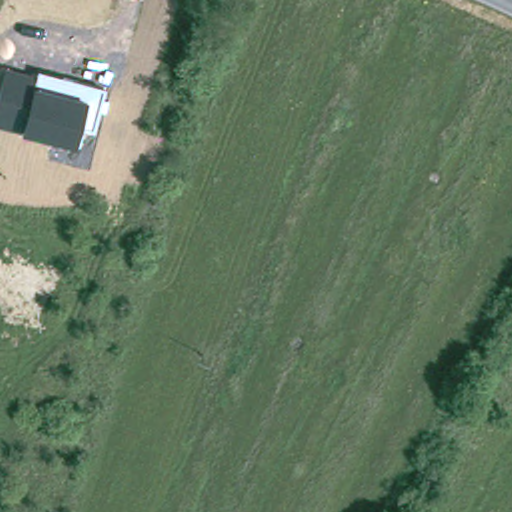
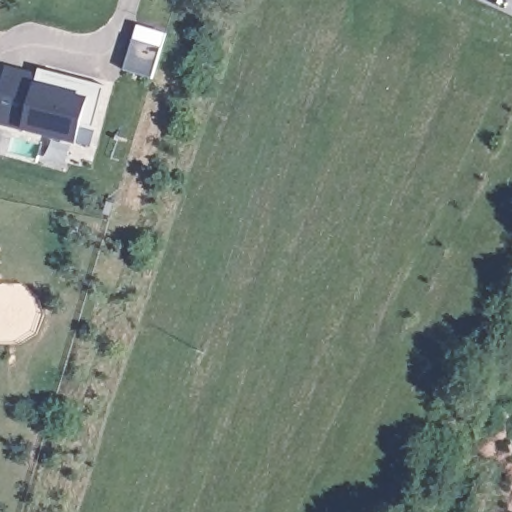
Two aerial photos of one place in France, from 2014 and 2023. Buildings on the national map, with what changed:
new [(133,23),(161,31),(157,45),(148,77),(119,68),(128,37),(133,23)]
unchanged [(37,74),(38,68),(108,88),(96,131),(82,127),(76,145),(0,124),(0,92),(7,66),(37,74)]

